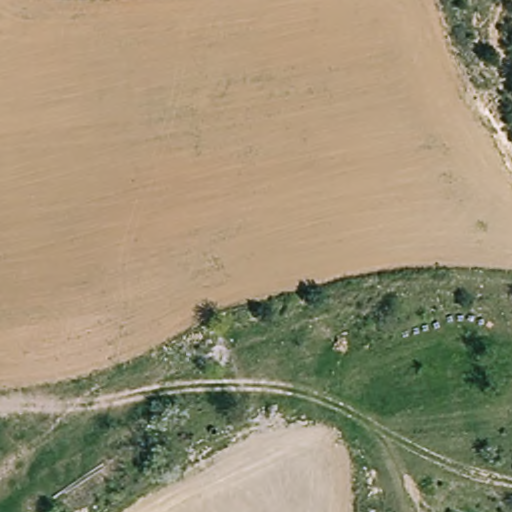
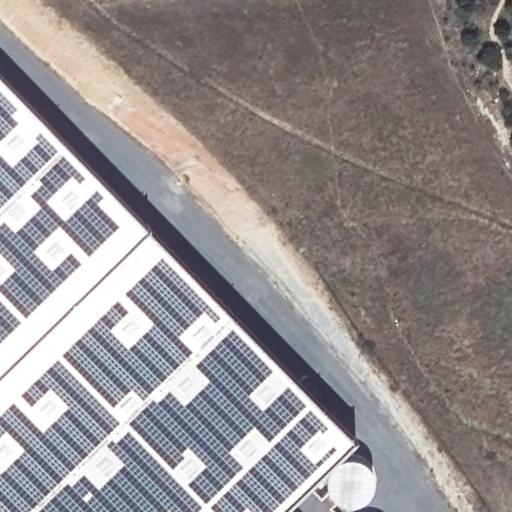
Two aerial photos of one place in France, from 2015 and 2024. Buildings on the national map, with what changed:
new [(353,437),(306,483),(319,498),(326,492),(336,503),(330,509),(333,512),(0,512),(0,74),(353,437)]

